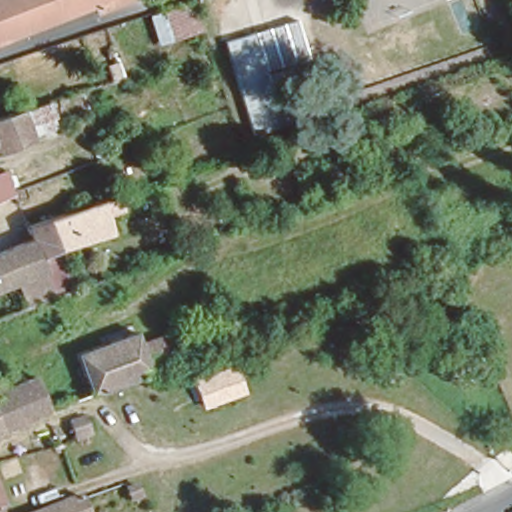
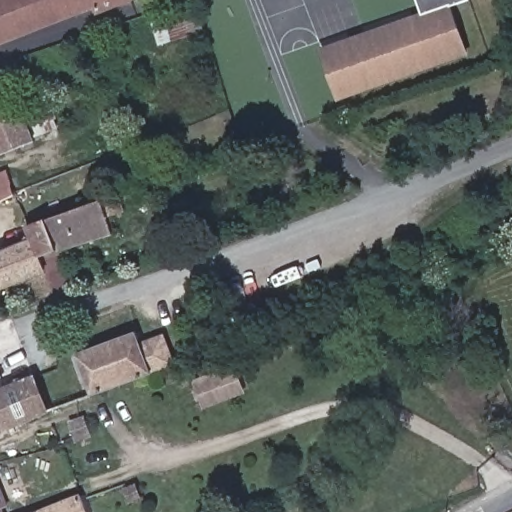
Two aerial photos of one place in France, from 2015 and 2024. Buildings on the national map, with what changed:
unchanged [(0,0),(59,0),(66,19),(0,42),(0,0)]
unchanged [(92,9),(66,19),(59,0),(97,0),(101,14),(96,15),(92,9)]
unchanged [(131,0),(132,3),(101,14),(97,0),(131,0)]
unchanged [(146,14),(192,0),(194,0),(203,27),(154,45),(146,14)]
new [(318,48),(422,13),(417,0),(470,0),(450,7),(469,55),(337,102),(318,48)]
unchanged [(52,100),(57,122),(37,131),(29,135),(30,141),(0,151),(0,117),(27,109),(52,100)]
unchanged [(0,202),(0,176),(8,172),(18,192),(12,196),(9,197),(0,202)]
unchanged [(55,245),(47,221),(46,215),(114,192),(119,206),(102,212),(110,233),(57,251),(55,245)]
unchanged [(22,223),(29,221),(36,218),(46,215),(47,221),(55,245),(57,251),(34,258),(38,273),(15,285),(0,292),(0,244),(25,232),(22,223)]
demolished [(76,307),(79,315),(22,339),(16,323),(27,318),(124,277),(127,286),(119,289),(76,307)]
unchanged [(136,328),(139,339),(167,328),(177,355),(148,366),(89,390),(74,353),(136,328)]
unchanged [(203,408),(194,381),(237,365),(247,392),(203,408)]
unchanged [(24,428),(9,390),(34,380),(50,418),(24,428)]
unchanged [(24,428),(0,438),(0,393),(9,390),(24,428)]
unchanged [(0,507),(0,488),(7,505),(0,507)]
unchanged [(86,512),(39,512),(37,508),(79,493),(86,512)]
unchanged [(37,508),(39,512),(28,512),(37,508)]

